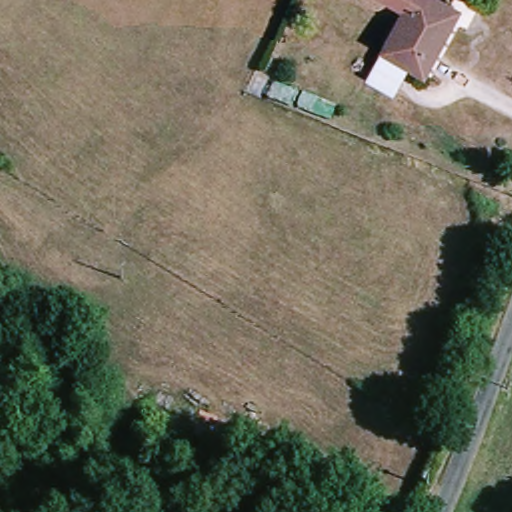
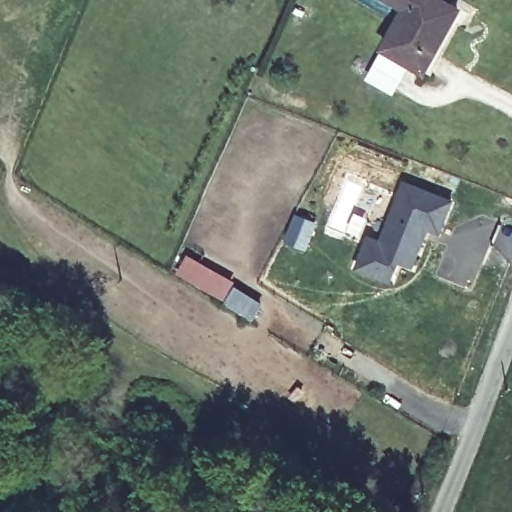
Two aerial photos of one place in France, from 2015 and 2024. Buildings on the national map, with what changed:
unchanged [(380,0),(414,0),(406,14),(380,0)]
unchanged [(428,78),(411,69),(384,54),(406,14),(414,0),(439,0),(462,13),(428,78)]
unchanged [(411,69),(395,97),(368,83),(384,54),(411,69)]
new [(426,235),(414,264),(401,259),(392,279),(359,266),(371,236),(383,240),(399,200),(406,182),(453,200),(441,230),(434,228),(430,237),(426,235)]
new [(188,257),(263,302),(255,314),(181,269),(188,257)]

